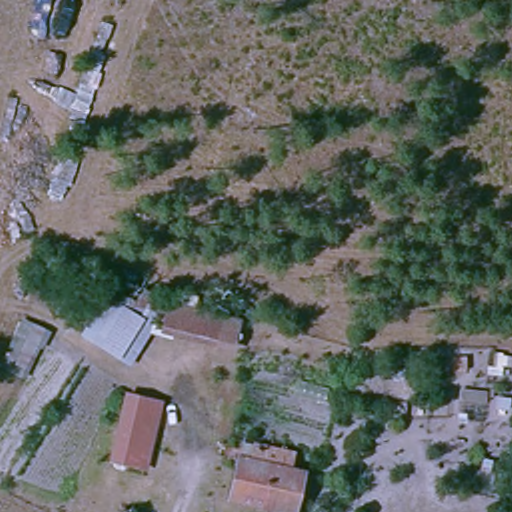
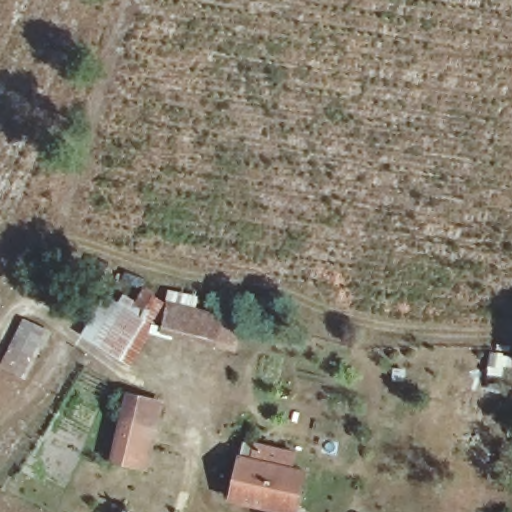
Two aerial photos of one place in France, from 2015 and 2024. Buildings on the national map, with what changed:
unchanged [(79,332),(110,287),(121,292),(131,277),(171,297),(199,302),(192,337),(157,330),(134,368),(79,332)]
unchanged [(0,373),(0,357),(24,317),(55,328),(23,385),(0,373)]
unchanged [(123,392),(165,397),(157,437),(116,428),(123,392)]
unchanged [(157,437),(150,478),(108,471),(116,428),(157,437)]
unchanged [(285,512),(269,512),(227,504),(232,472),(253,476),(255,452),(296,461),(285,512)]

